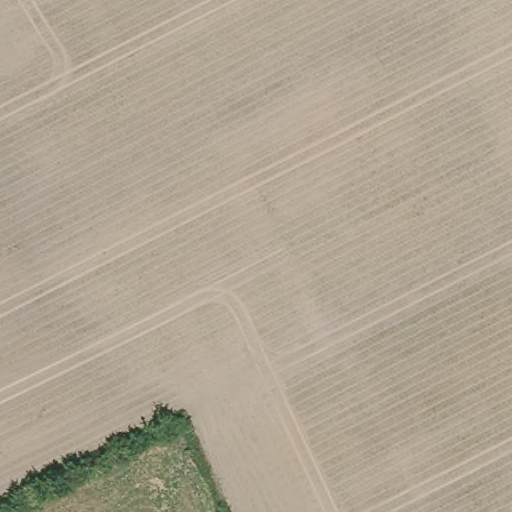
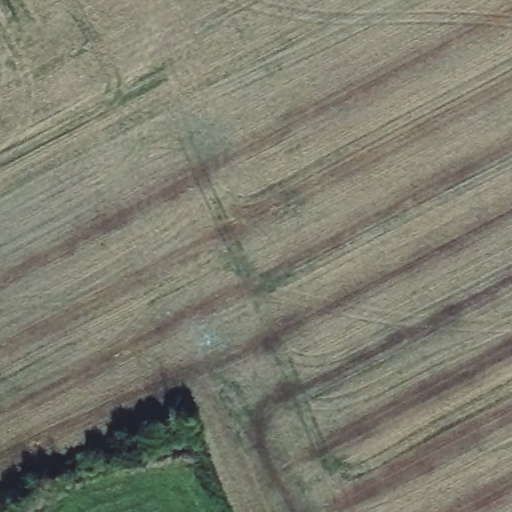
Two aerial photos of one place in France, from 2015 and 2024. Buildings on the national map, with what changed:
[]

